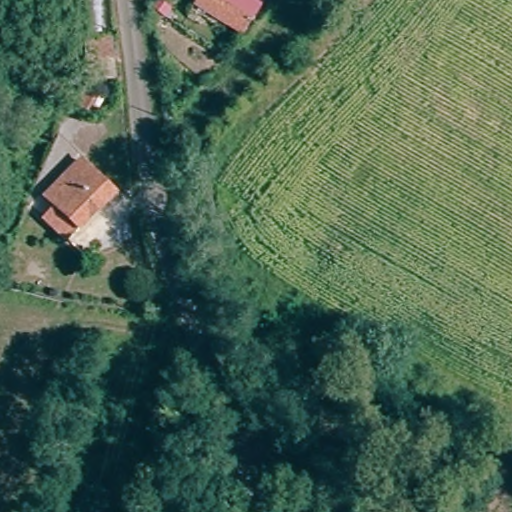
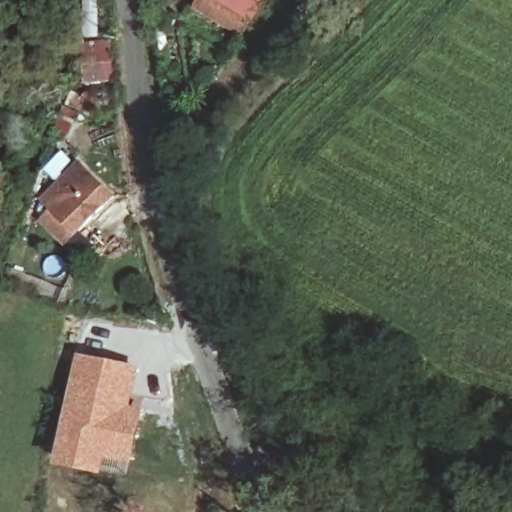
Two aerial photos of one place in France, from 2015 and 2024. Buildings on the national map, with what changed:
unchanged [(231,25),(236,16),(209,0),(264,0),(250,24),(244,33),(231,25)]
unchanged [(93,115),(77,108),(82,96),(98,102),(93,115)]
unchanged [(69,241),(39,209),(75,175),(105,208),(69,241)]
new [(77,353),(140,365),(135,404),(145,408),(132,478),(55,466),(77,353)]

